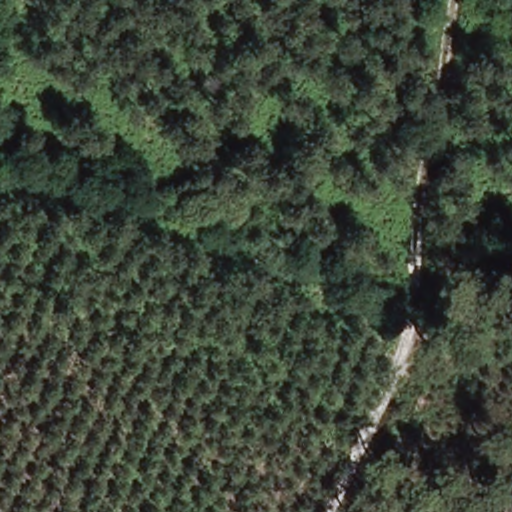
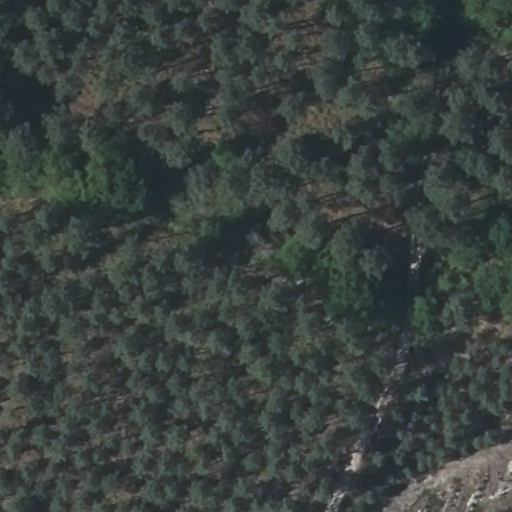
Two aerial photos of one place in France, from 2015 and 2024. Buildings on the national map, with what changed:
[]

